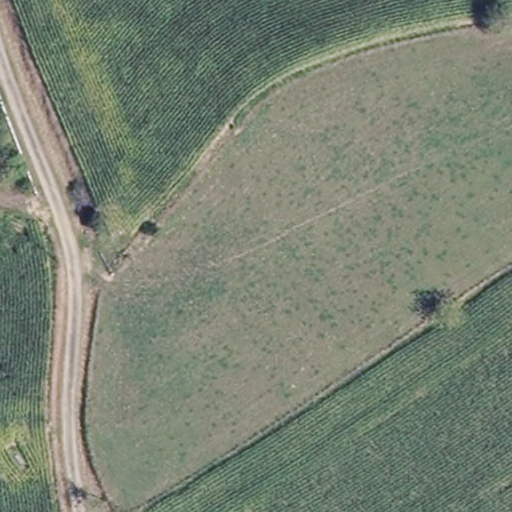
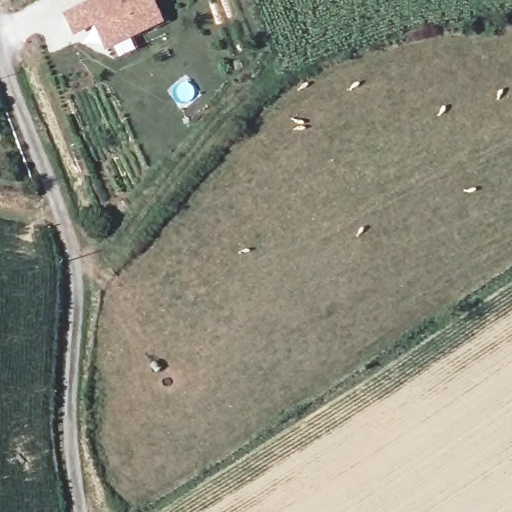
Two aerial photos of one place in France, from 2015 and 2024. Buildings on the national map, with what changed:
new [(104,52),(92,28),(71,37),(60,15),(90,0),(151,0),(162,23),(104,52)]

